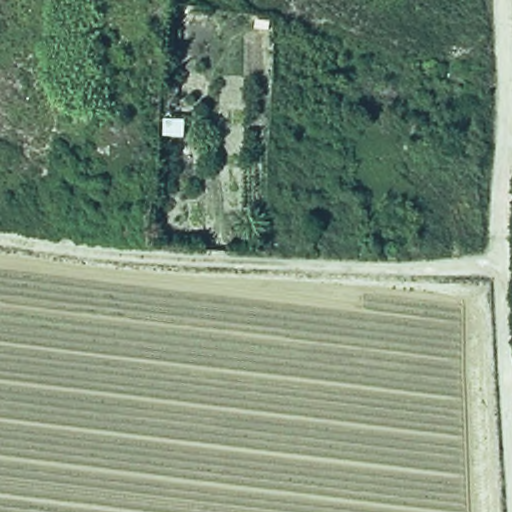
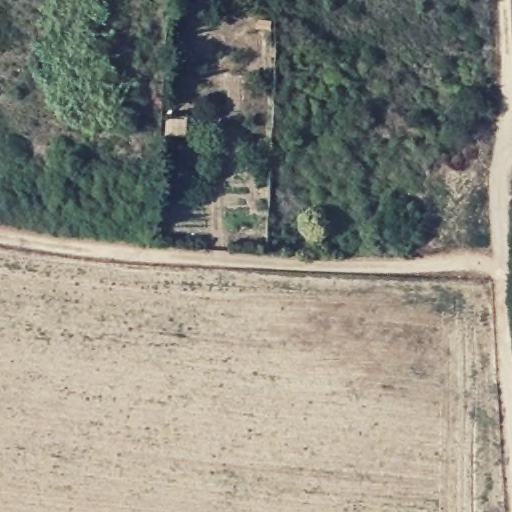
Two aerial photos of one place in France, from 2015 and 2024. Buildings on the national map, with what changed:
unchanged [(181,127),(179,144),(163,143),(165,125),(181,127)]

